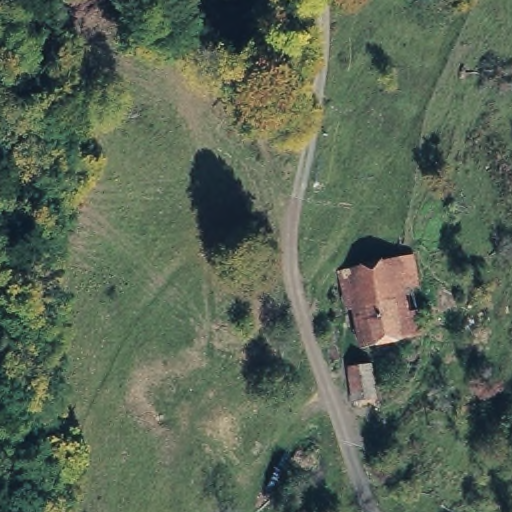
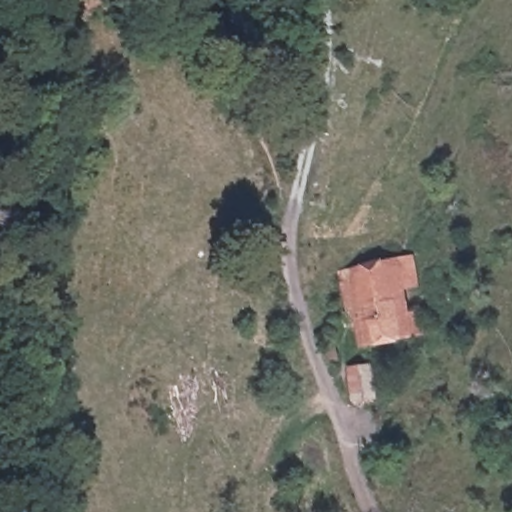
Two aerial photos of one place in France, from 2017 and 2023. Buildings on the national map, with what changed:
unchanged [(353,339),(344,268),(352,269),(408,256),(414,282),(402,286),(405,309),(416,309),(417,330),(416,331),(353,339)]
unchanged [(377,361),(378,398),(346,401),(340,368),(377,361)]
unchanged [(371,404),(377,437),(357,440),(353,407),(371,404)]

